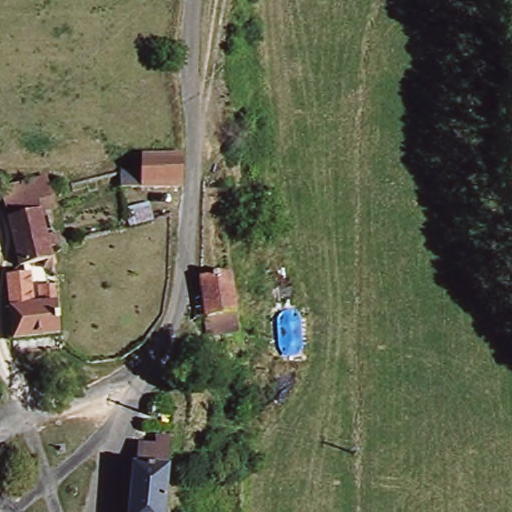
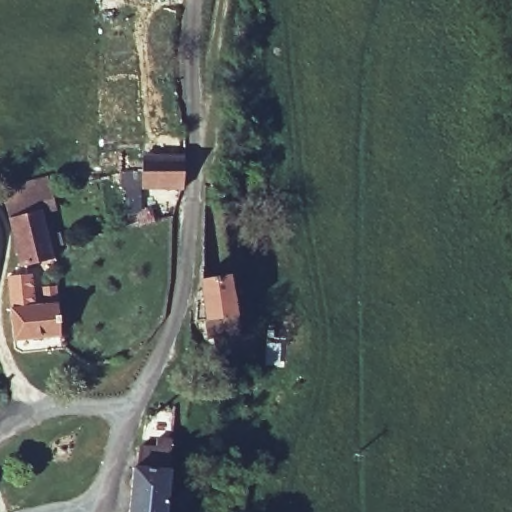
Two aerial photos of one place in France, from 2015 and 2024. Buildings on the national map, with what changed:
unchanged [(145,170),(145,154),(185,154),(186,187),(126,185),(125,170),(145,170)]
unchanged [(50,228),(62,276),(25,282),(24,279),(17,240),(14,217),(54,208),(62,206),(65,224),(64,224),(50,228)]
unchanged [(144,232),(142,216),(169,213),(171,227),(144,232)]
unchanged [(210,324),(204,266),(234,265),(239,321),(210,324)]
unchanged [(46,305),(45,292),(59,291),(60,335),(12,339),(8,281),(24,279),(25,282),(32,307),(46,305)]
unchanged [(149,468),(151,446),(166,447),(167,440),(182,442),(180,470),(176,512),(140,512),(145,467),(149,468)]

